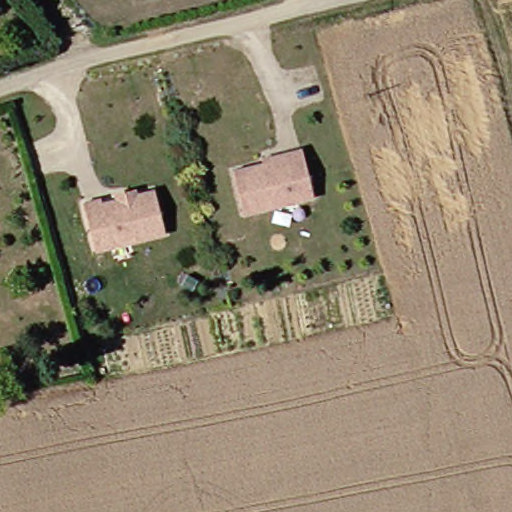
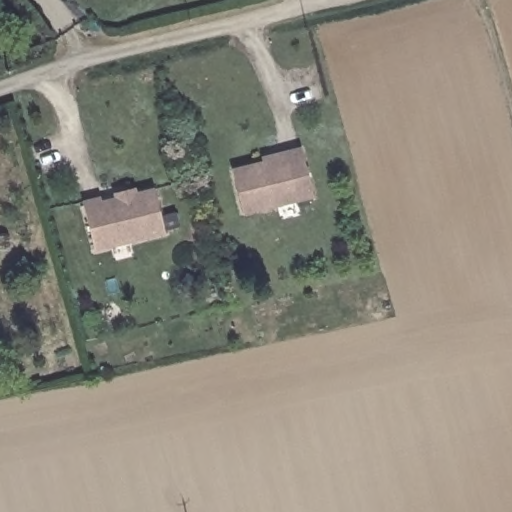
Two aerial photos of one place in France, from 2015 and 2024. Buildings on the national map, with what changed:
unchanged [(314,194),(244,213),(233,169),(263,161),(262,156),(283,150),(300,145),(314,194)]
unchanged [(167,229),(97,248),(85,199),(102,194),(103,199),(156,186),(167,229)]

